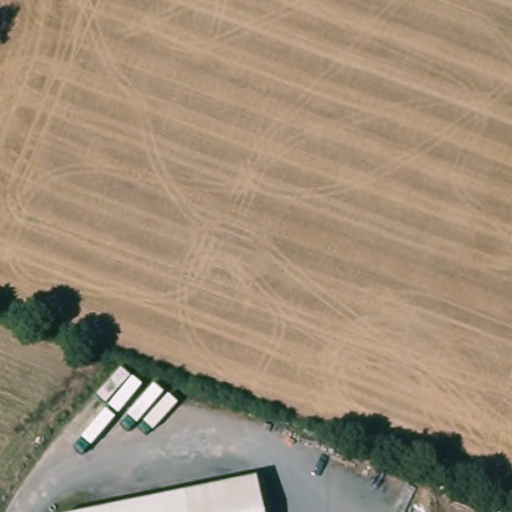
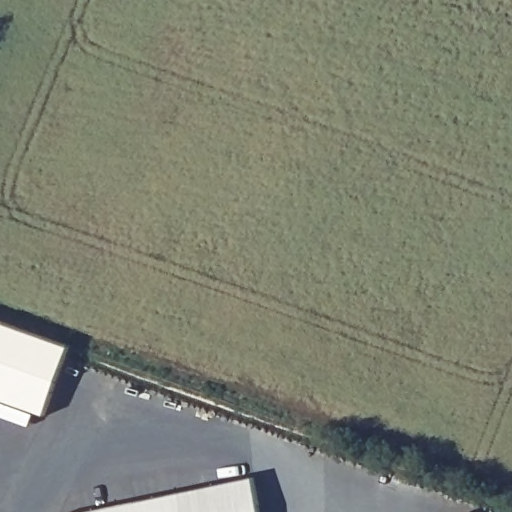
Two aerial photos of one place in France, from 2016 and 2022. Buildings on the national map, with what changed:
new [(46,413),(0,397),(0,321),(69,346),(46,413)]
unchanged [(262,512),(187,512),(182,490),(256,475),(262,512)]
unchanged [(187,512),(62,512),(182,490),(187,512)]

